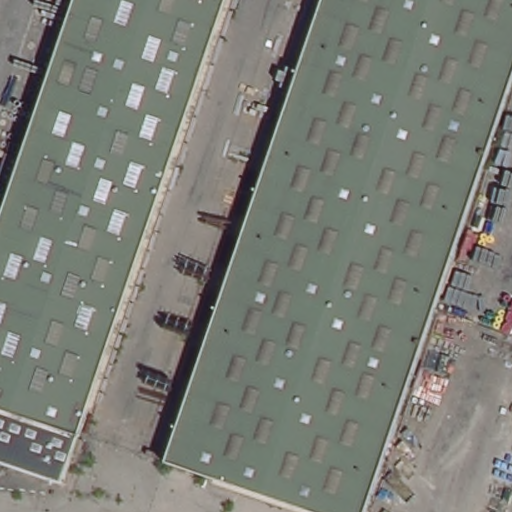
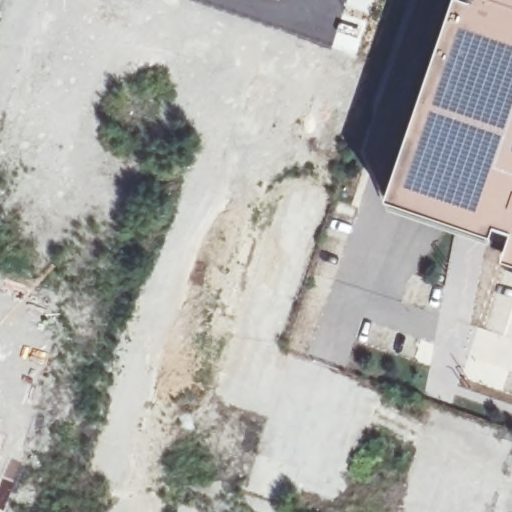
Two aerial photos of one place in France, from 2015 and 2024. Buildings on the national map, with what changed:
demolished [(0,464),(0,236),(82,0),(235,0),(68,488),(0,464)]
demolished [(512,0),(512,102),(371,512),(306,512),(165,463),(327,0),(512,0)]
new [(418,0),(381,109),(392,112),(376,159),(402,168),(400,172),(465,194),(473,166),(512,180),(512,265),(500,262),(511,230),(495,224),(488,244),(391,211),(363,151),(415,0),(418,0)]
new [(465,194),(400,172),(402,168),(376,159),(392,112),(381,109),(418,0),(468,0),(469,0),(512,0),(512,180),(473,166),(465,194)]

